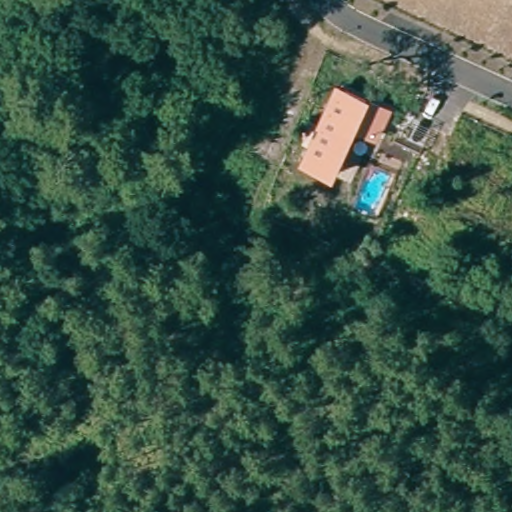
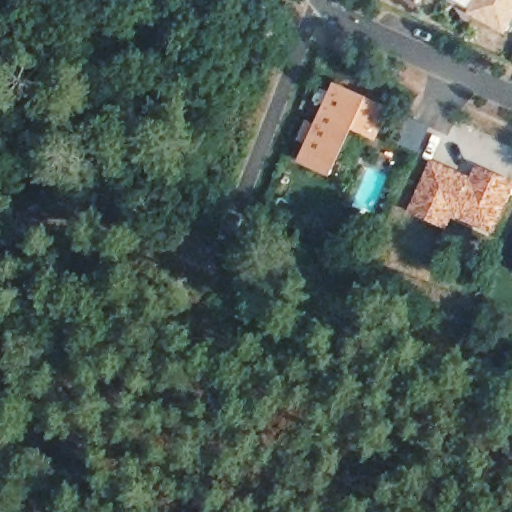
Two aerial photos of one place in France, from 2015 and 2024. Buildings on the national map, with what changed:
new [(505,27),(473,9),(478,0),(512,0),(512,15),(505,27)]
unchanged [(374,97),(397,107),(382,140),(359,130),(337,177),(302,160),(339,81),(374,97)]
new [(402,115),(429,127),(417,152),(390,140),(402,115)]
new [(431,158),(468,175),(474,164),(512,181),(512,190),(491,236),(453,219),(447,231),(407,212),(431,158)]

